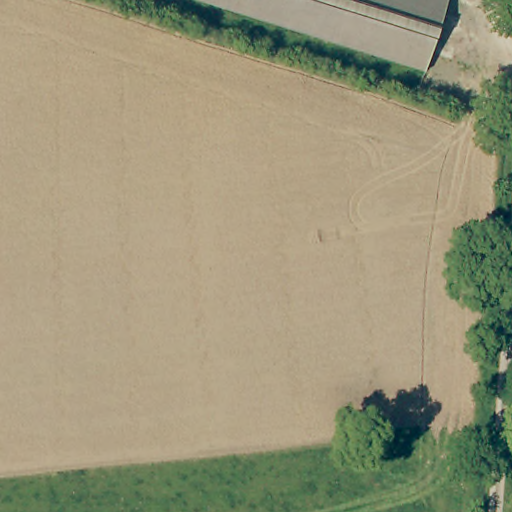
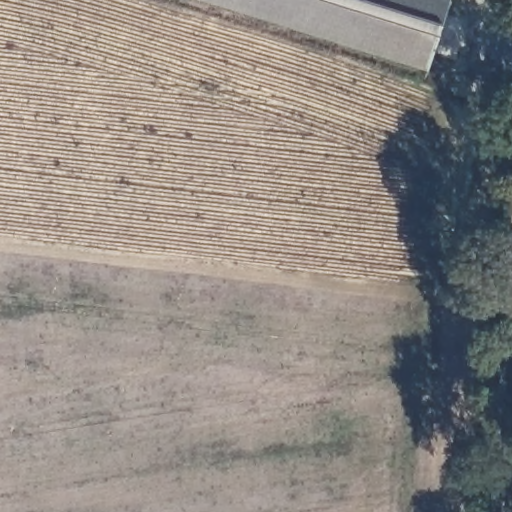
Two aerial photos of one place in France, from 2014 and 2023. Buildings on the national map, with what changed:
unchanged [(203,0),(444,0),(423,76),(203,0)]

